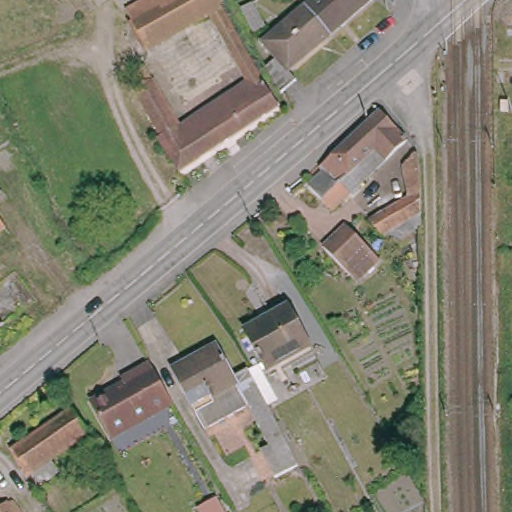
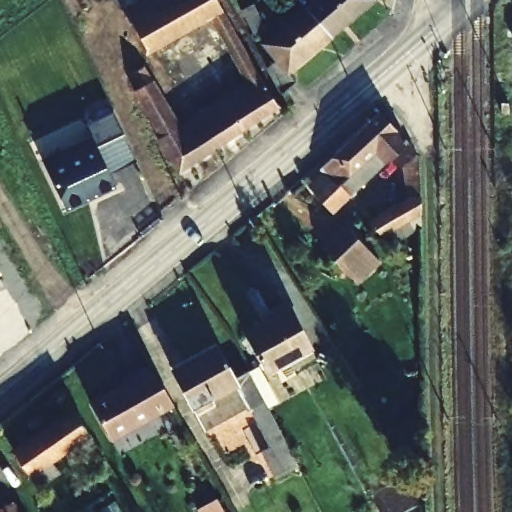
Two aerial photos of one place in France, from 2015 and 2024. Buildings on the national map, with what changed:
unchanged [(247,84),(213,17),(151,50),(137,24),(131,11),(150,0),(160,0),(165,8),(180,0),(220,0),(265,80),(282,104),(182,171),(166,148),(166,149),(160,137),(162,136),(138,89),(141,87),(134,73),(149,66),(181,128),(190,122),(247,84)]
unchanged [(248,0),(256,0),(265,20),(256,24),(246,1),(248,0)]
unchanged [(285,82),(265,56),(274,49),(265,37),(310,0),(335,31),(289,68),(295,75),(285,82)]
unchanged [(335,31),(310,0),(311,0),(373,0),(335,31)]
new [(94,137),(88,125),(114,113),(135,158),(110,171),(114,181),(66,204),(47,165),(51,157),(94,137)]
unchanged [(347,201),(334,214),(310,188),(324,175),(320,171),(382,115),(408,144),(347,201)]
unchanged [(409,202),(406,163),(418,153),(420,217),(411,225),(417,233),(407,243),(400,235),(389,244),(377,230),(409,202)]
demolished [(0,236),(0,217),(10,230),(0,236)]
unchanged [(352,231),(384,267),(360,289),(327,253),(352,231)]
new [(0,281),(0,277),(2,280),(0,281)]
unchanged [(245,332),(290,308),(311,346),(264,370),(245,332)]
unchanged [(195,411),(177,377),(193,368),(197,361),(219,350),(235,381),(251,373),(254,380),(267,405),(252,412),(249,407),(204,429),(195,411)]
unchanged [(115,443),(95,407),(130,387),(127,382),(155,367),(178,408),(115,443)]
unchanged [(299,465),(279,475),(270,457),(275,454),(252,412),(267,405),(299,465)]
unchanged [(38,483),(31,473),(17,454),(16,452),(77,410),(90,433),(53,458),(60,468),(38,483)]
unchanged [(406,512),(406,505),(421,504),(422,512),(406,512)]
unchanged [(11,510),(16,506),(20,512),(3,512),(8,508),(11,510)]

